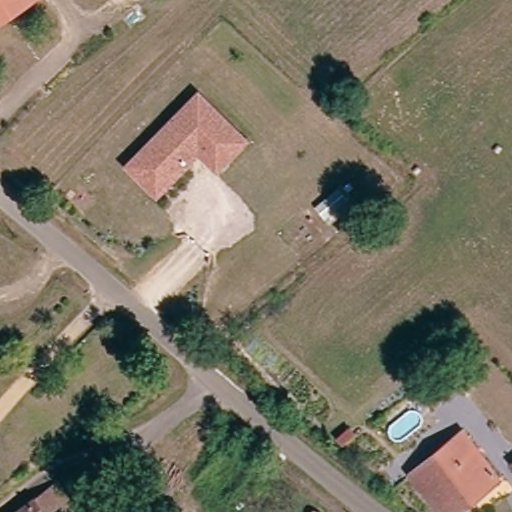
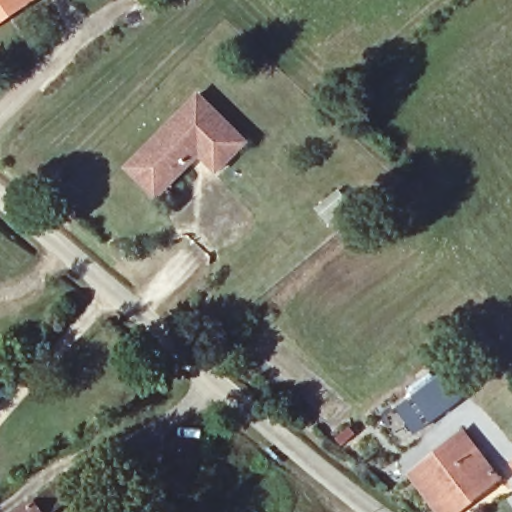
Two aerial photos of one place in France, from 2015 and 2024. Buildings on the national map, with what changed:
unchanged [(3,26),(0,22),(0,0),(40,0),(40,1),(3,26)]
unchanged [(129,170),(140,158),(199,95),(248,141),(219,173),(196,151),(189,159),(190,168),(172,187),(159,200),(129,170)]
new [(441,372),(461,399),(415,434),(394,406),(441,372)]
unchanged [(461,509),(458,512),(435,512),(429,506),(402,478),(444,446),(436,434),(459,419),(467,429),(474,424),(507,472),(461,509)]
unchanged [(62,486),(74,504),(65,512),(24,512),(41,499),(62,486)]

